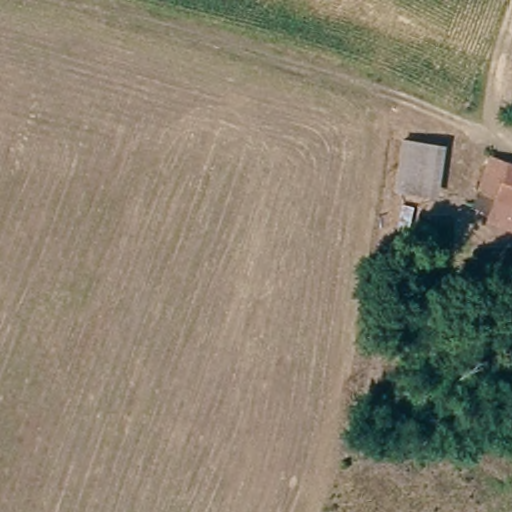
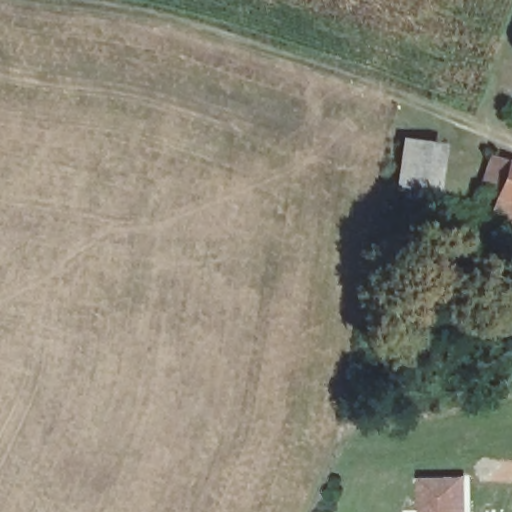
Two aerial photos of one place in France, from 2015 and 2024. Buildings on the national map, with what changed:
unchanged [(439,150),(434,197),(407,195),(401,195),(405,148),(411,149),(439,150)]
unchanged [(504,224),(479,217),(492,171),(512,176),(512,194),(507,212),(504,224)]
unchanged [(512,194),(512,214),(507,212),(512,194)]
unchanged [(504,224),(507,212),(512,214),(512,237),(501,235),(504,224)]
new [(467,476),(468,512),(417,512),(418,478),(467,476)]

